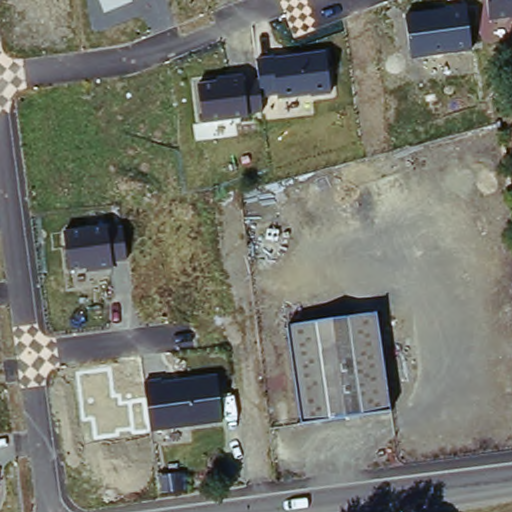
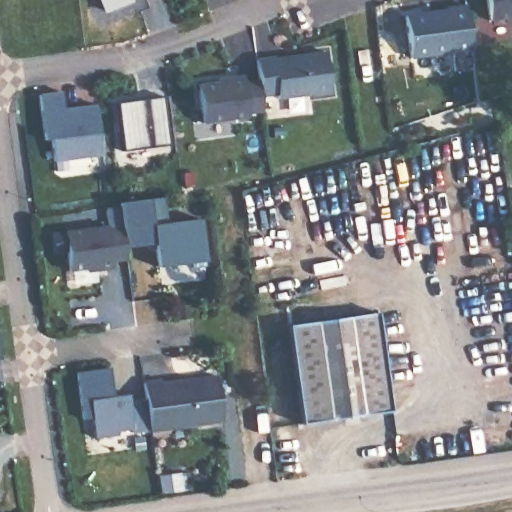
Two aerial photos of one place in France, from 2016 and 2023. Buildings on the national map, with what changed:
unchanged [(131,0),(132,3),(103,14),(98,0),(131,0)]
unchanged [(512,0),(512,18),(489,20),(487,0),(512,0)]
unchanged [(405,16),(467,9),(471,53),(410,59),(405,16)]
unchanged [(197,84),(217,83),(217,78),(242,73),(243,83),(259,82),(258,60),(328,54),(331,94),(278,99),(278,95),(261,97),(263,114),(249,115),(249,119),(202,124),(197,84)]
new [(53,140),(45,141),(40,94),(63,90),(65,109),(96,105),(102,155),(55,162),(53,140)]
new [(162,98),(169,146),(121,153),(114,104),(162,98)]
new [(161,198),(164,223),(199,219),(204,268),(190,269),(190,264),(156,268),(154,246),(126,249),(124,225),(119,225),(119,203),(161,198)]
unchanged [(62,232),(124,225),(127,259),(112,261),(113,270),(85,274),(84,269),(68,272),(62,232)]
unchanged [(309,324),(319,322),(382,313),(395,411),(342,419),(322,423),(305,424),(294,325),(309,324)]
new [(149,432),(92,439),(89,419),(79,421),(75,373),(109,369),(111,396),(129,394),(130,402),(145,399),(149,432)]
unchanged [(144,384),(217,374),(222,423),(149,432),(144,384)]

